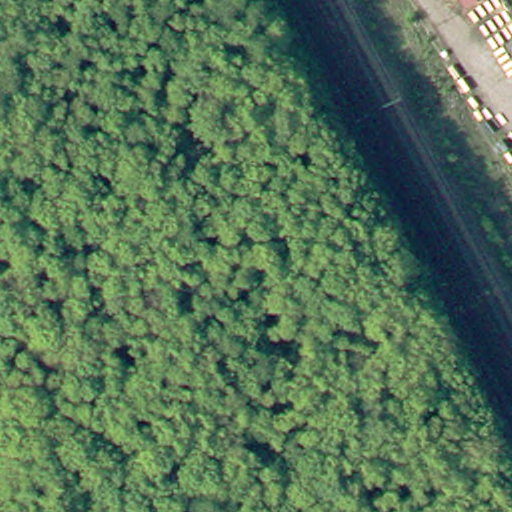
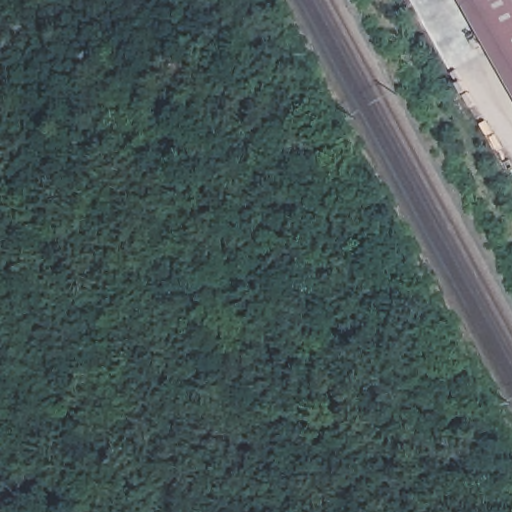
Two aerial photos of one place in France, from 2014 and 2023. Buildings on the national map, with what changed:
unchanged [(473,6),(469,0),(483,0),(473,6)]
new [(512,78),(473,6),(483,0),(512,0),(512,78)]

